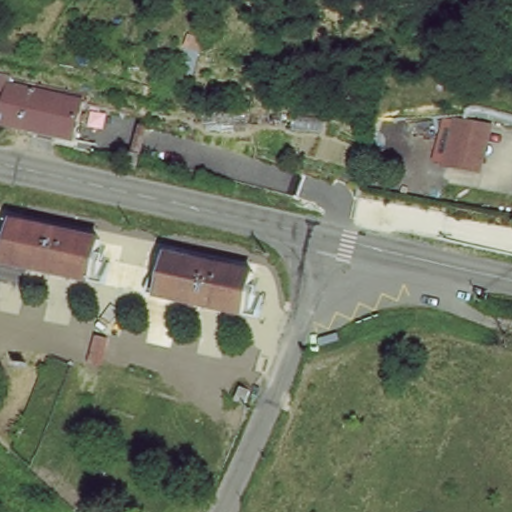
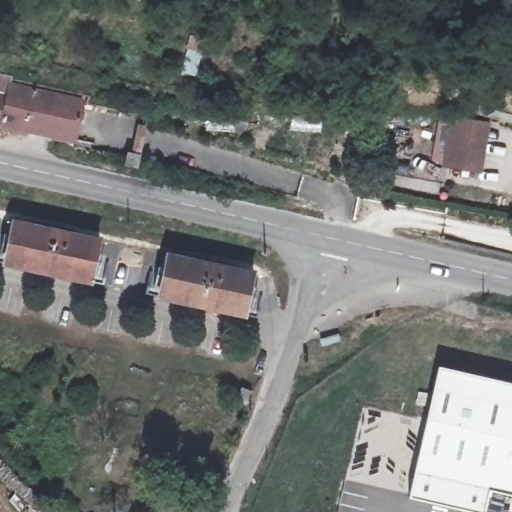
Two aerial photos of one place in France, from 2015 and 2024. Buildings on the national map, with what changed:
unchanged [(75,141),(2,124),(3,119),(0,119),(0,78),(11,80),(10,86),(83,103),(75,141)]
unchanged [(445,172),(458,125),(483,129),(471,175),(445,172)]
unchanged [(125,168),(127,154),(138,156),(135,170),(125,168)]
unchanged [(13,224),(14,223),(98,240),(98,244),(103,244),(101,257),(109,258),(103,285),(0,263),(0,234),(5,234),(7,223),(13,224)]
unchanged [(162,262),(167,263),(167,260),(252,278),(251,281),(257,283),(254,294),(262,296),(256,323),(146,299),(152,273),(160,274),(162,262)]
new [(438,367),(512,383),(512,510),(508,509),(511,493),(490,489),(484,512),(477,512),(408,497),(438,367)]
unchanged [(245,406),(234,402),(240,388),(250,392),(245,406)]

